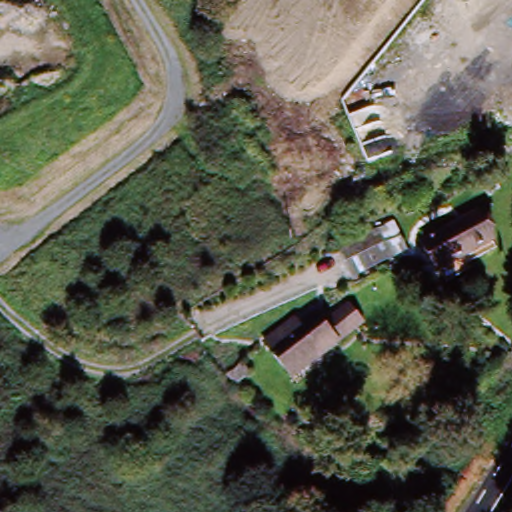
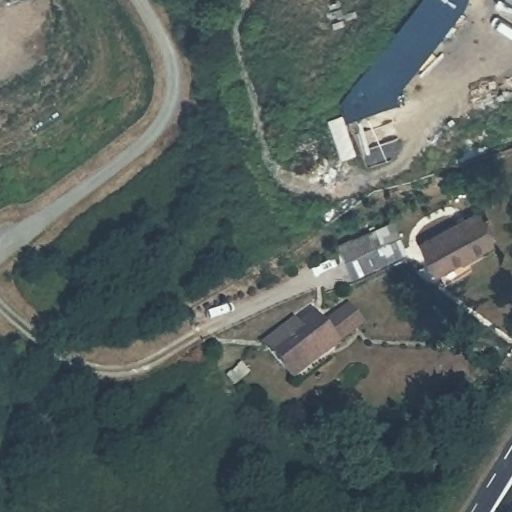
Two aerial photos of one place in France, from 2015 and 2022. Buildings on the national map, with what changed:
new [(424,0),(467,0),(464,5),(396,91),(367,69),(424,0)]
unchanged [(417,245),(450,227),(459,242),(473,234),(482,250),(468,258),(435,276),(417,245)]
unchanged [(344,264),(348,260),(375,237),(386,250),(397,263),(364,287),(354,276),(344,264)]
unchanged [(266,353),(287,334),(292,339),(312,321),(320,330),(332,318),(349,337),(296,386),(266,353)]
unchanged [(248,360),(258,370),(246,383),(235,372),(248,360)]

